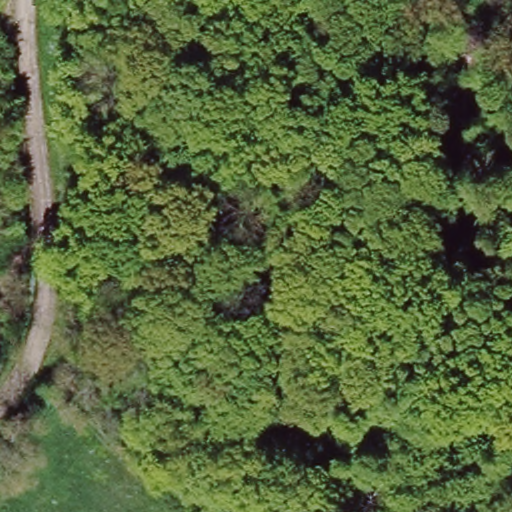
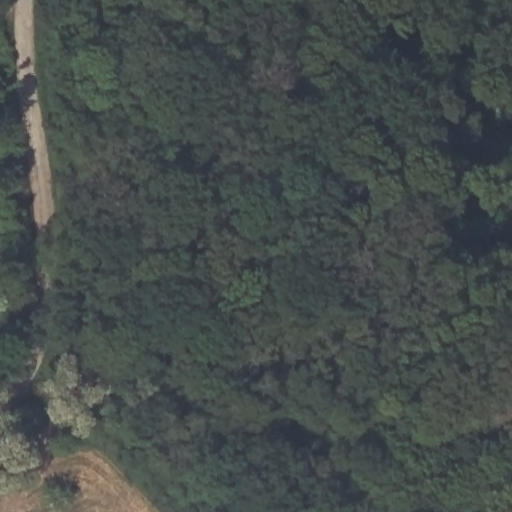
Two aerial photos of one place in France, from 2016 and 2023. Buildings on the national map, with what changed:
[]

